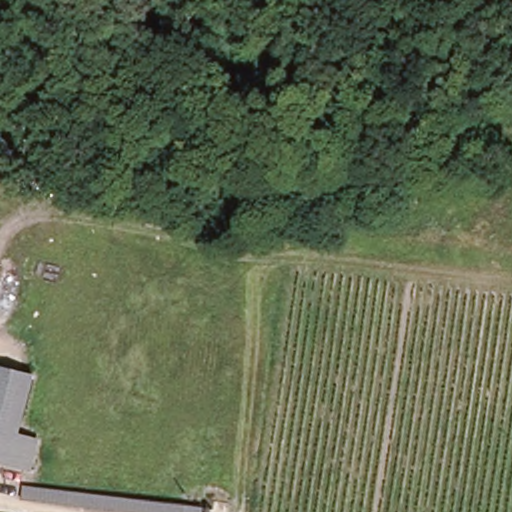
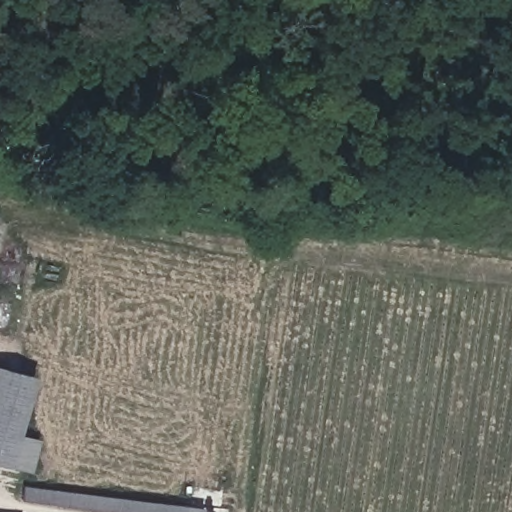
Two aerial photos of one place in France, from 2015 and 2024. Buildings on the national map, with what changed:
unchanged [(0,369),(30,376),(8,463),(0,461),(0,369)]
unchanged [(185,512),(119,512),(21,500),(24,481),(186,501),(185,512)]

